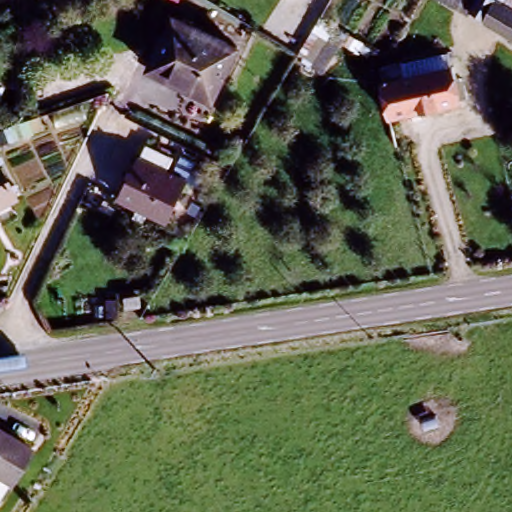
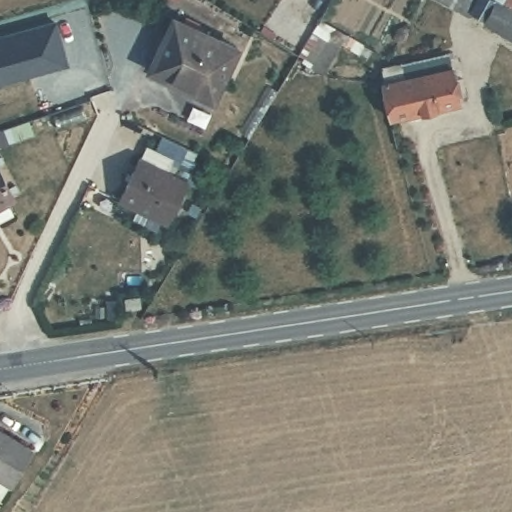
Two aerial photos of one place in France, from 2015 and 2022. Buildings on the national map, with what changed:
unchanged [(177,0),(171,9),(153,0),(177,0)]
unchanged [(482,0),(508,15),(512,9),(512,45),(434,0),(482,0)]
unchanged [(483,1),(484,0),(512,0),(512,9),(508,15),(483,1)]
unchanged [(364,46),(358,56),(341,46),(323,75),(296,58),(319,21),(364,46)]
unchanged [(213,102),(149,76),(170,23),(234,49),(213,102)]
new [(56,24),(66,67),(0,85),(0,39),(56,24)]
unchanged [(389,127),(382,88),(451,76),(458,114),(389,127)]
unchanged [(120,207),(146,150),(168,160),(163,174),(171,177),(179,160),(193,166),(184,184),(165,227),(120,207)]
unchanged [(11,201),(0,208),(0,181),(11,201)]
unchanged [(29,447),(6,481),(0,477),(0,429),(29,447)]

